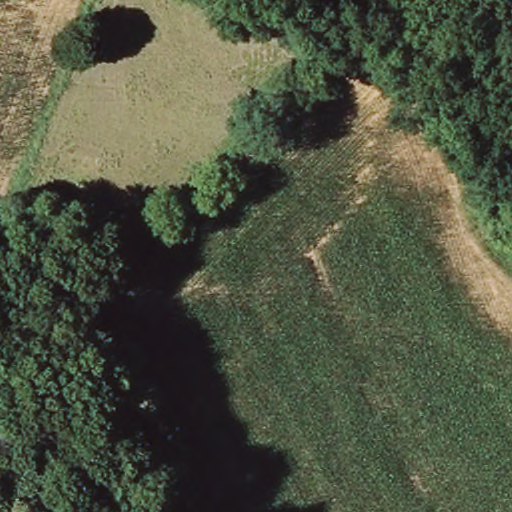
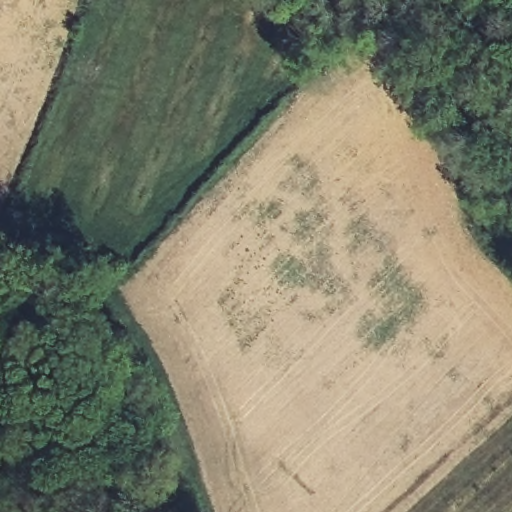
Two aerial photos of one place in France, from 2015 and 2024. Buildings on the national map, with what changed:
unchanged [(453,115),(447,103),(457,97),(464,109),(453,115)]

